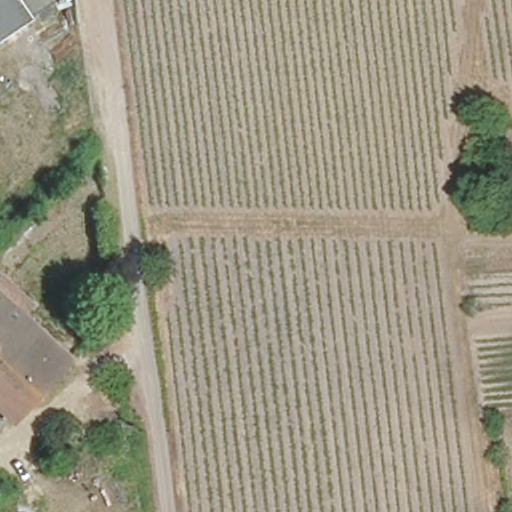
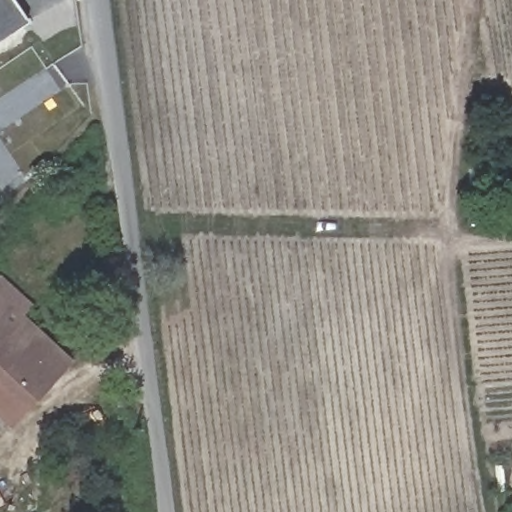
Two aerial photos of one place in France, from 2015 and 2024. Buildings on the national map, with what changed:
unchanged [(22,24),(0,39),(0,0),(8,0),(22,24)]
unchanged [(488,164),(488,182),(468,182),(469,163),(488,164)]
unchanged [(67,357),(3,426),(0,423),(0,296),(67,357)]

